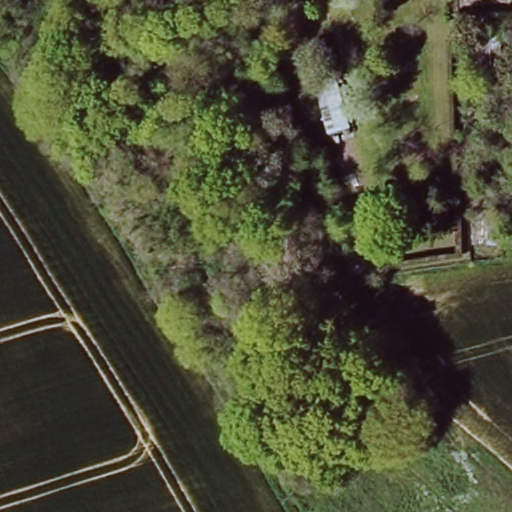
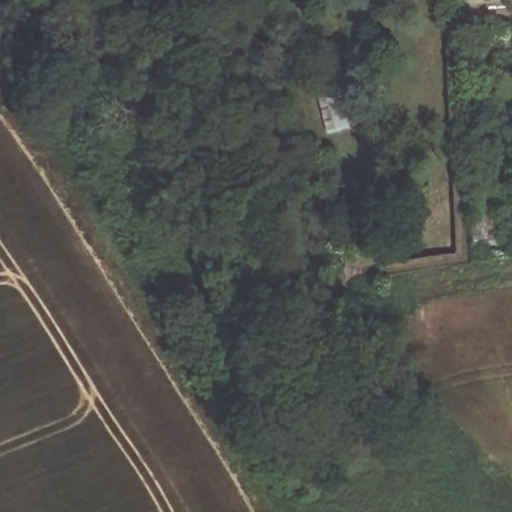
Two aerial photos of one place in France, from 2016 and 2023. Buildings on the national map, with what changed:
unchanged [(475,43),(471,24),(504,21),(505,59),(496,59),(496,76),(480,77),(475,43)]
unchanged [(319,66),(312,40),(330,35),(358,125),(339,129),(319,66)]
unchanged [(473,207),(501,204),(504,248),(478,249),(473,207)]

